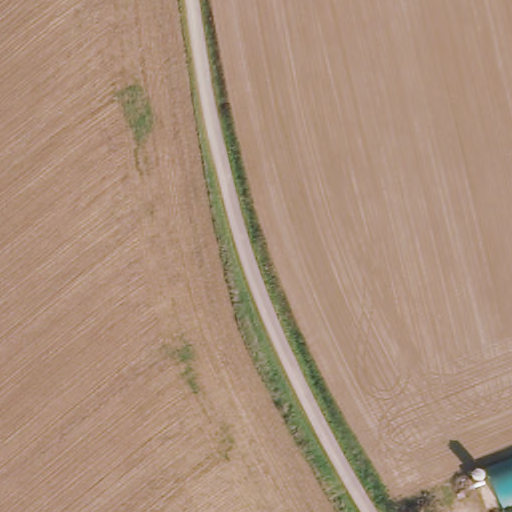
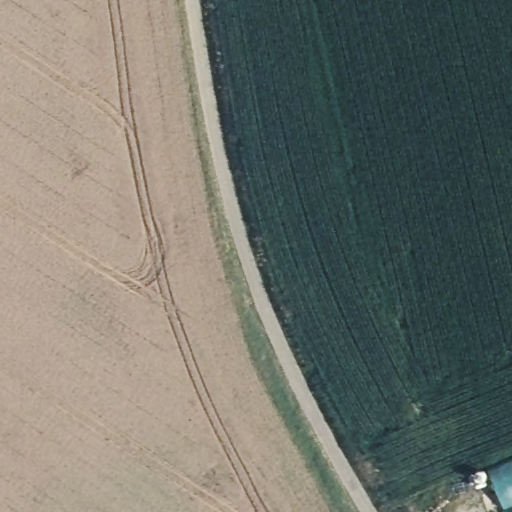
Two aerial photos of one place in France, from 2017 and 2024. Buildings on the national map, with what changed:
unchanged [(501,506),(486,467),(512,456),(512,501),(501,506)]

